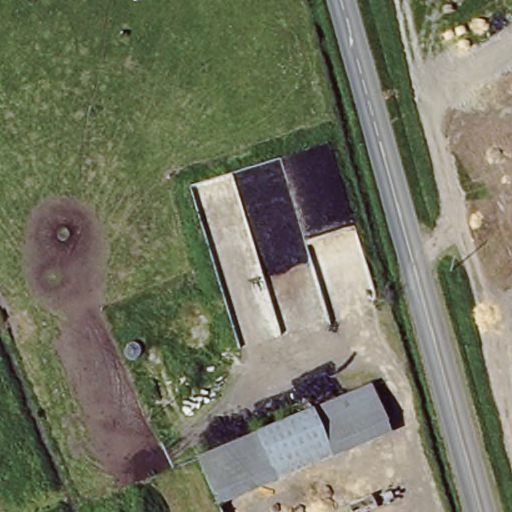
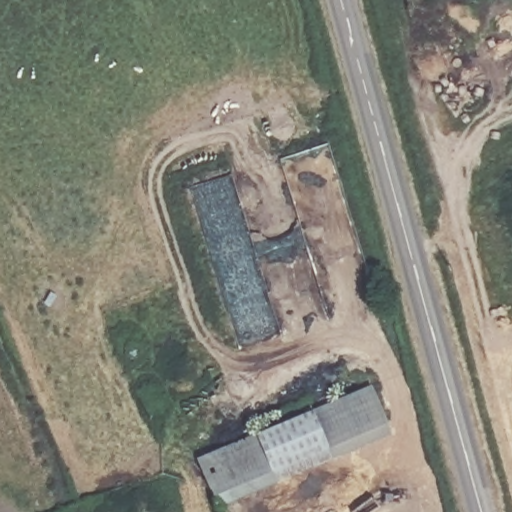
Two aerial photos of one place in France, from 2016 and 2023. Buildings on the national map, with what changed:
unchanged [(372,386),(390,438),(215,507),(196,457),(372,386)]

